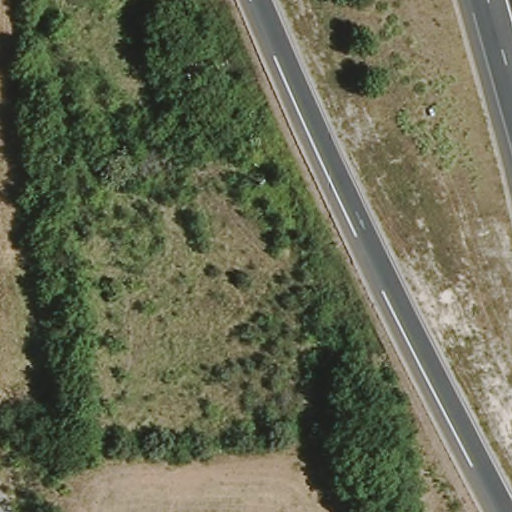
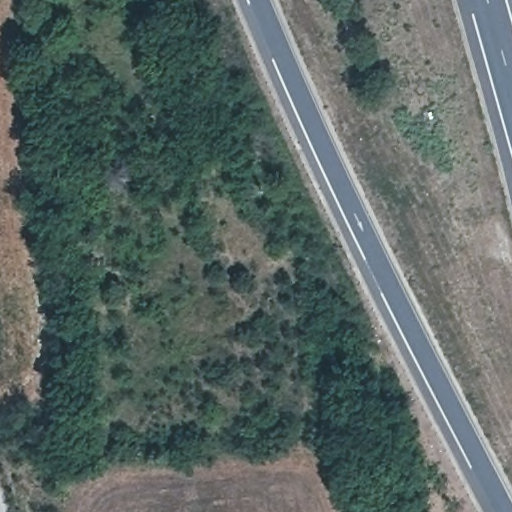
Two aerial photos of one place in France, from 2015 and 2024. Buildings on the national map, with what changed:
unchanged [(184,65),(199,64),(198,88),(185,87),(184,65)]

